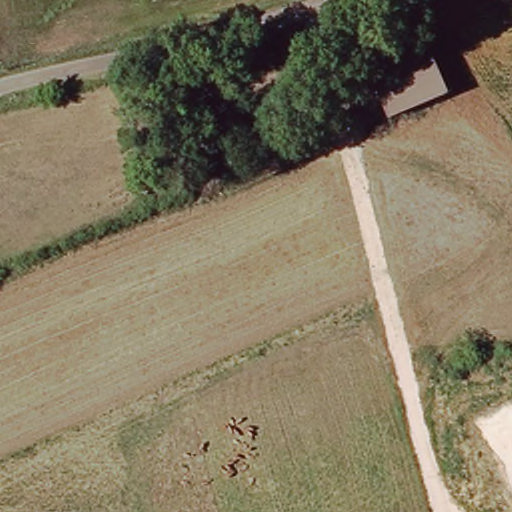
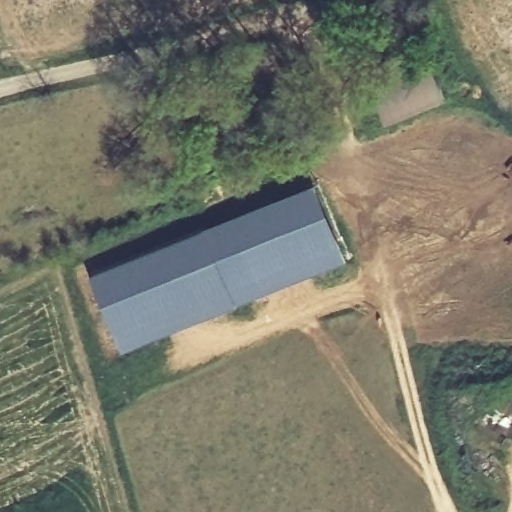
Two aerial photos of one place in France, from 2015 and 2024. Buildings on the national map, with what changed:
unchanged [(399,123),(373,71),(429,43),(455,96),(399,123)]
new [(317,179),(349,257),(125,347),(92,271),(317,179)]

